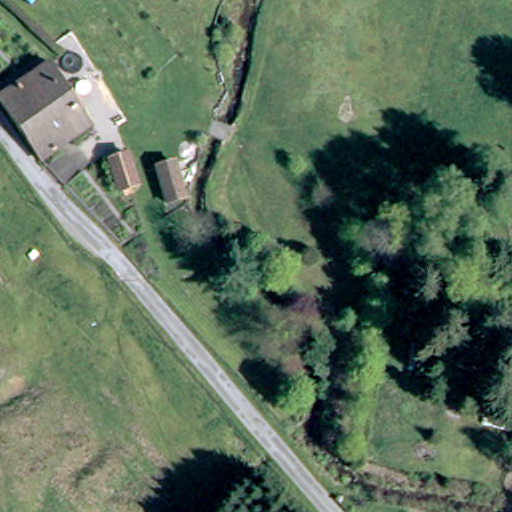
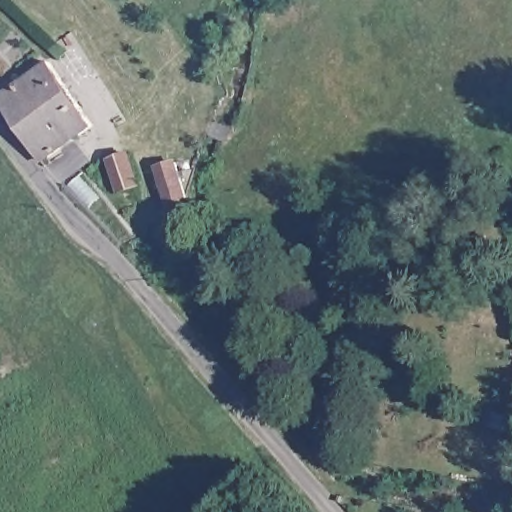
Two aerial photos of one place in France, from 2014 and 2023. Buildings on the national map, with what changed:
unchanged [(60,68),(101,129),(51,162),(8,99),(60,68)]
unchanged [(117,117),(103,125),(89,102),(100,92),(117,117)]
unchanged [(170,154),(180,187),(181,189),(179,189),(162,194),(151,159),(170,154)]
unchanged [(139,192),(132,195),(123,199),(110,170),(128,163),(139,192)]

